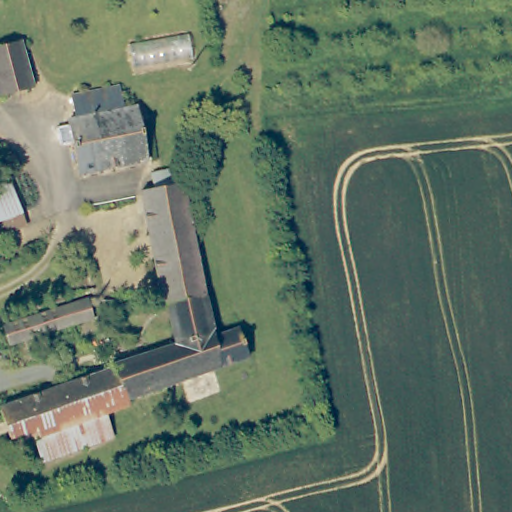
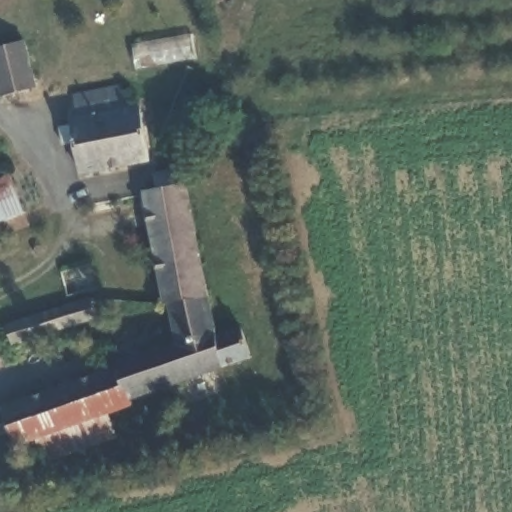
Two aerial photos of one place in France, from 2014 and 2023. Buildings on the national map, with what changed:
unchanged [(36,86),(0,96),(0,46),(22,40),(36,86)]
unchanged [(76,121),(83,119),(79,99),(124,89),(129,107),(139,106),(152,159),(89,171),(76,121)]
unchanged [(10,229),(5,216),(0,218),(0,171),(11,167),(24,209),(29,223),(10,229)]
unchanged [(143,194),(157,191),(154,175),(178,170),(181,186),(205,293),(167,302),(143,194)]
unchanged [(205,293),(215,331),(239,325),(250,360),(125,405),(125,411),(108,415),(41,436),(15,444),(4,407),(114,371),(113,366),(178,343),(167,302),(205,293)]
unchanged [(97,317),(11,345),(6,324),(91,297),(97,317)]
unchanged [(114,438),(47,458),(41,436),(108,415),(114,438)]

